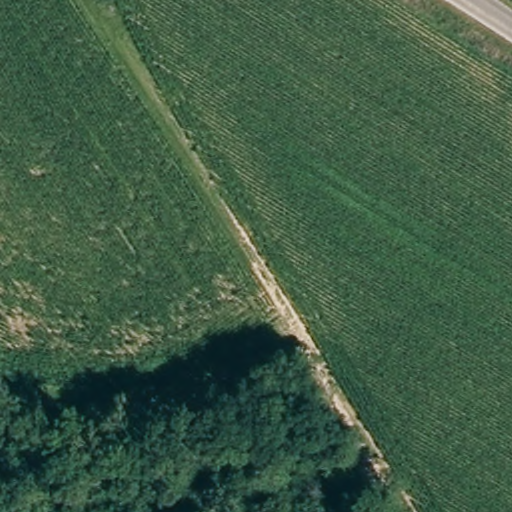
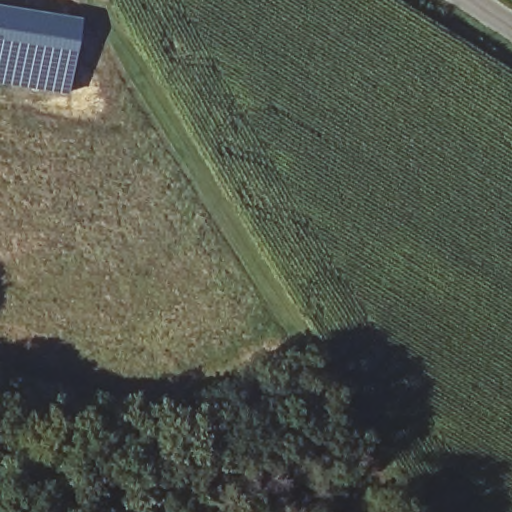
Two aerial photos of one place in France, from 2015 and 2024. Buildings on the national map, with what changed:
new [(69,95),(0,84),(0,5),(80,17),(69,95)]

